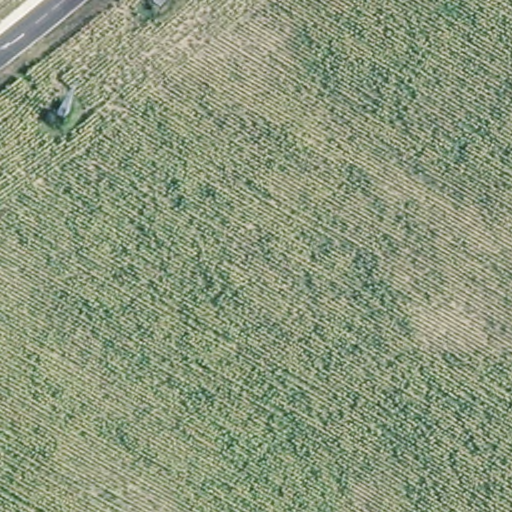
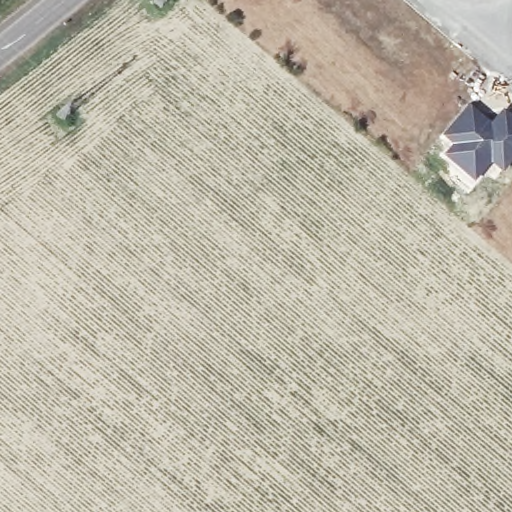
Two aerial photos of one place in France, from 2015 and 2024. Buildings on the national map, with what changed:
new [(490,121),(503,108),(512,115),(512,160),(501,173),(491,165),(473,183),(440,155),(449,145),(439,136),(469,103),(490,121)]

